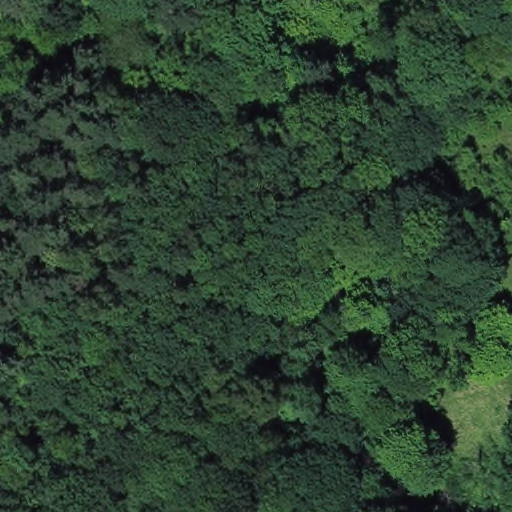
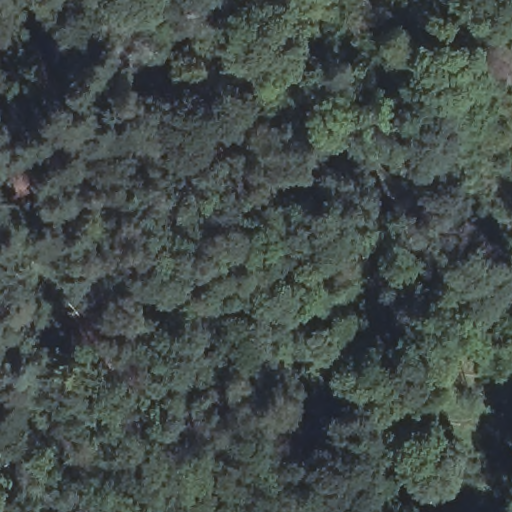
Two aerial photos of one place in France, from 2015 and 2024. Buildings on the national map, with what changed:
[]

